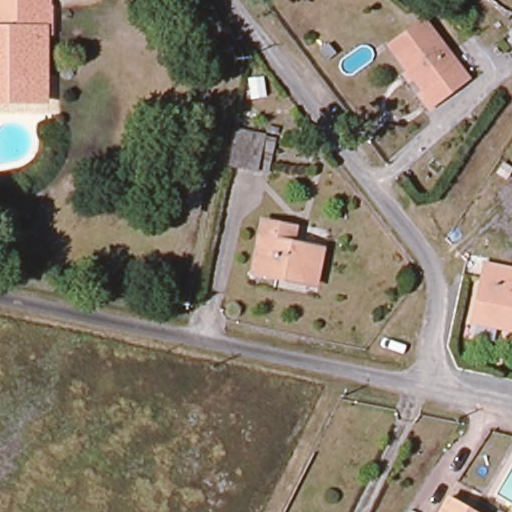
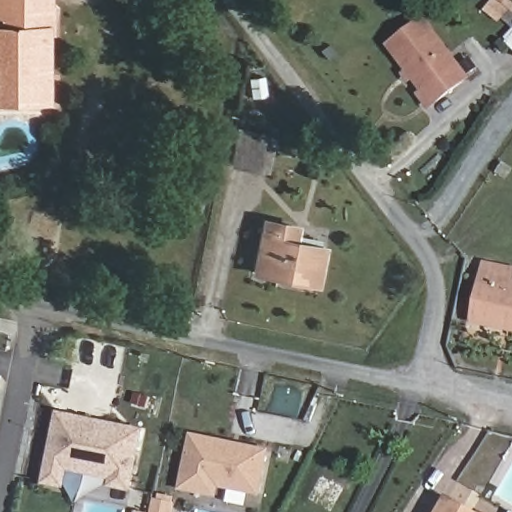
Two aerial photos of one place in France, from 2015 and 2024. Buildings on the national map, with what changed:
unchanged [(50,35),(45,34),(44,105),(0,104),(0,0),(50,0),(50,11),(50,35)]
unchanged [(466,84),(429,112),(386,52),(423,25),(466,84)]
unchanged [(512,49),(503,40),(512,30),(512,49)]
unchanged [(272,137),(267,172),(232,167),(234,128),(272,137)]
unchanged [(316,288),(249,275),(260,221),(287,226),(286,242),(322,249),(316,288)]
unchanged [(483,268),(512,274),(512,280),(511,290),(512,290),(512,337),(509,336),(471,327),(480,285),(483,268)]
new [(57,414),(90,421),(87,431),(105,434),(107,425),(140,431),(128,488),(110,485),(112,477),(65,468),(61,485),(44,482),(57,414)]
new [(191,436),(266,450),(257,492),(216,484),(214,494),(180,487),(191,436)]
demolished [(512,486),(512,505),(504,500),(512,486)]
unchanged [(450,493),(463,502),(479,512),(439,512),(445,501),(450,493)]

